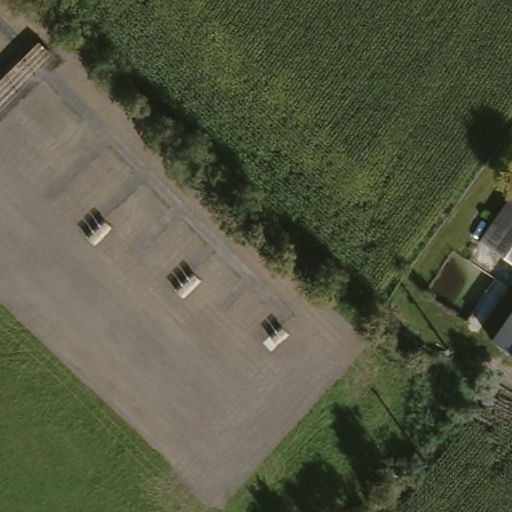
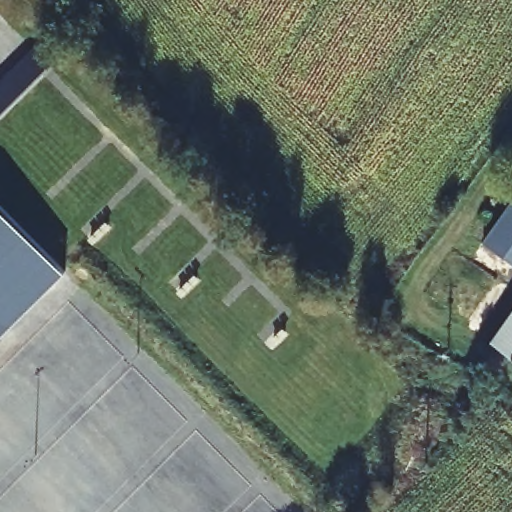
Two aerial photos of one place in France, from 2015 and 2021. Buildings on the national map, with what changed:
unchanged [(503,263),(509,254),(484,236),(512,198),(512,271),(503,263)]
new [(0,350),(0,204),(73,272),(0,350)]
unchanged [(493,335),(512,309),(512,349),(493,335)]

